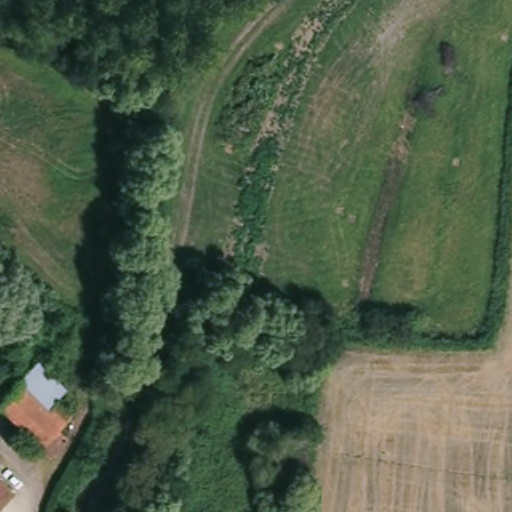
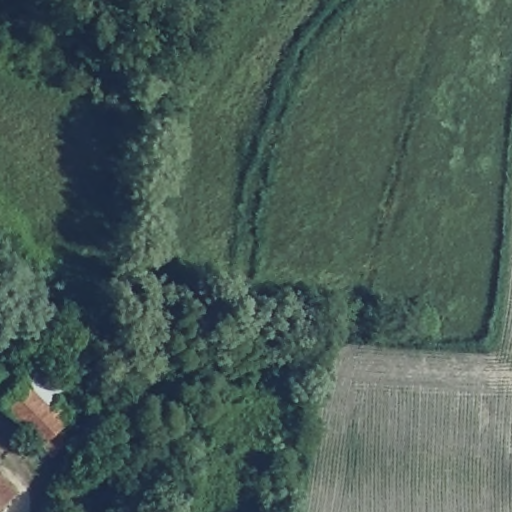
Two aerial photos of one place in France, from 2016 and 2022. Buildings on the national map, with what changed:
unchanged [(38,364),(65,392),(56,401),(44,412),(16,383),(38,364)]
unchanged [(71,417),(59,429),(68,440),(50,458),(0,404),(0,373),(4,370),(16,383),(44,412),(56,401),(71,417)]
unchanged [(14,499),(1,512),(0,512),(0,485),(14,499)]

